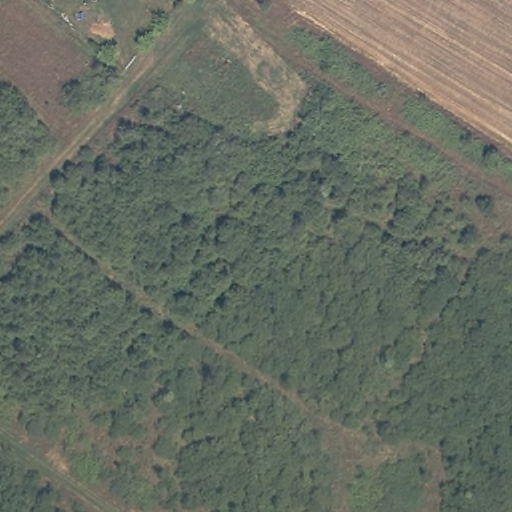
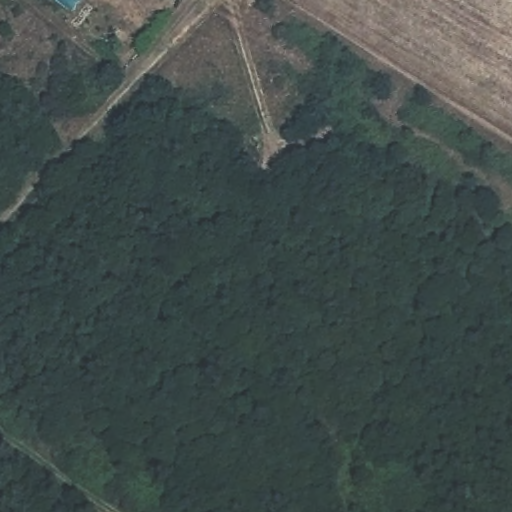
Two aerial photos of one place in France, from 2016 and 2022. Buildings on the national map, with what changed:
[]

